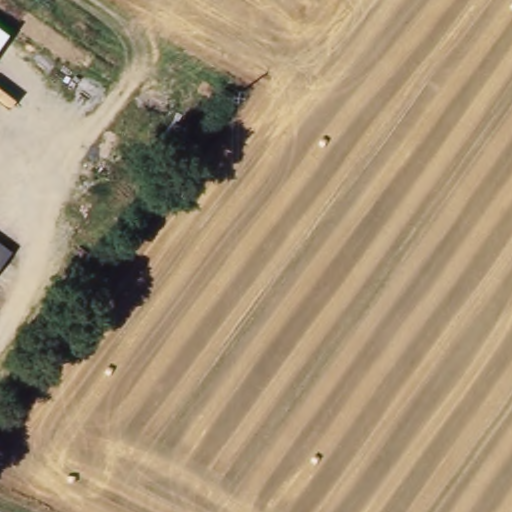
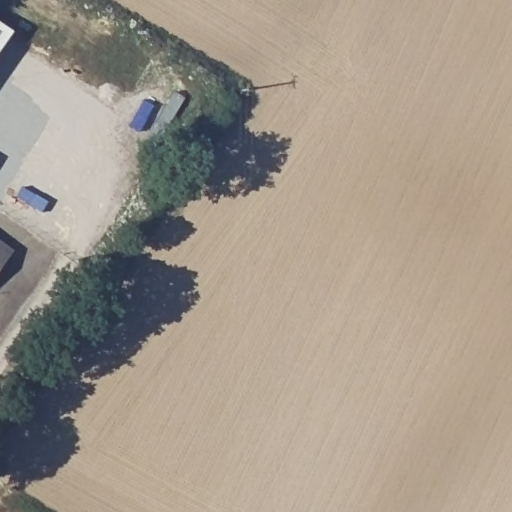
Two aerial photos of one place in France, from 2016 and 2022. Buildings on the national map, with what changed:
unchanged [(0,52),(0,15),(17,27),(0,52)]
unchanged [(0,275),(0,239),(17,252),(0,275)]

